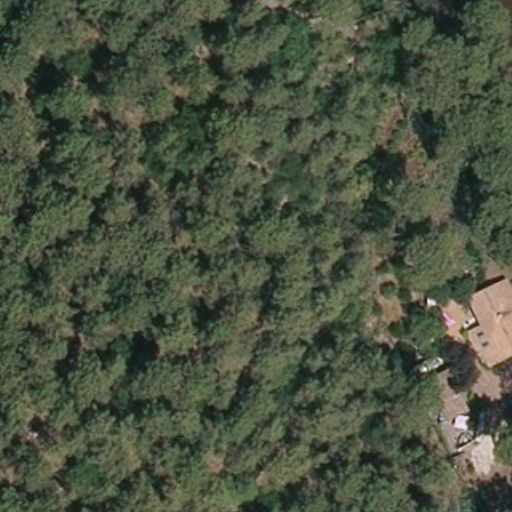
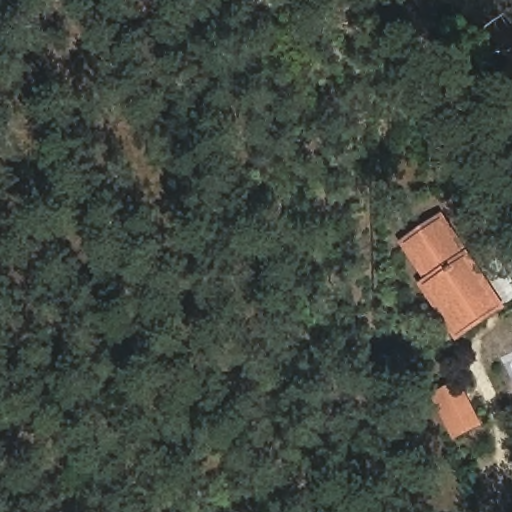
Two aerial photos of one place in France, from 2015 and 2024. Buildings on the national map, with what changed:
new [(457,342),(416,286),(425,280),(399,243),(442,215),(508,309),(457,342)]
demolished [(510,283),(512,287),(512,357),(491,367),(486,358),(477,357),(469,333),(480,329),(470,299),(510,283)]
unchanged [(465,406),(449,414),(431,382),(446,373),(465,406)]

